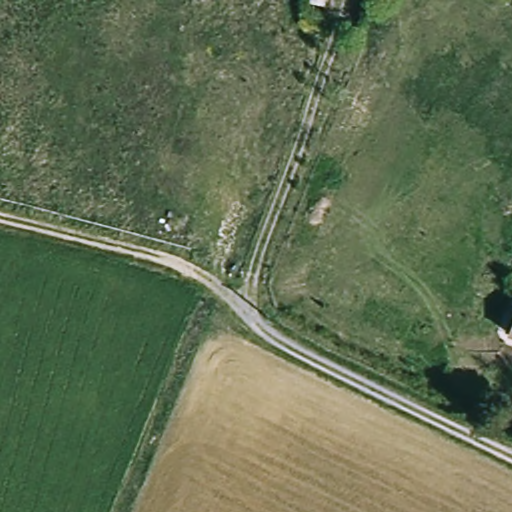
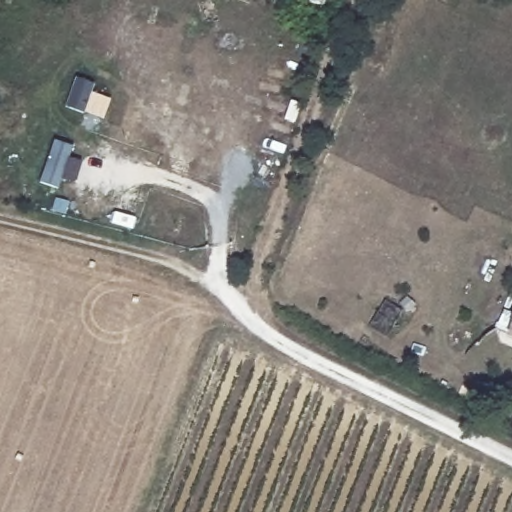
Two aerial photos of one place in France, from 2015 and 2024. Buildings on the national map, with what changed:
new [(54,140),(73,147),(58,188),(39,181),(54,140)]
unchanged [(512,323),(512,337),(507,335),(512,323)]

